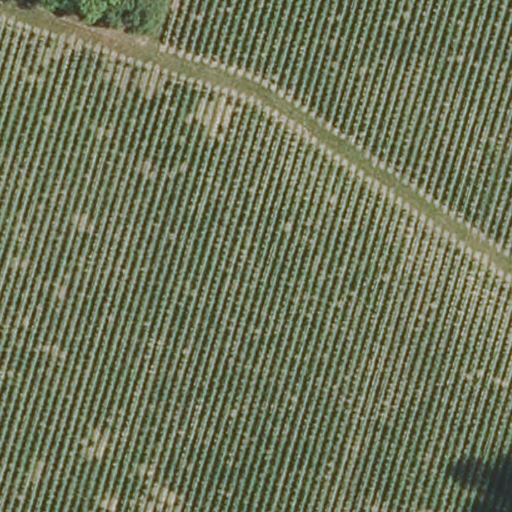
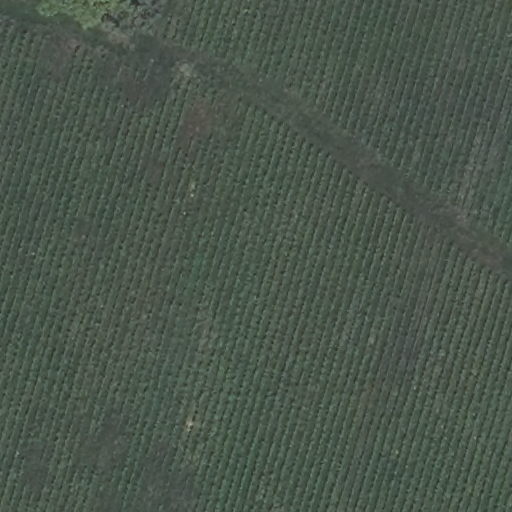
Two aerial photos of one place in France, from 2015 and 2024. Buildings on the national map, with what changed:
[]

